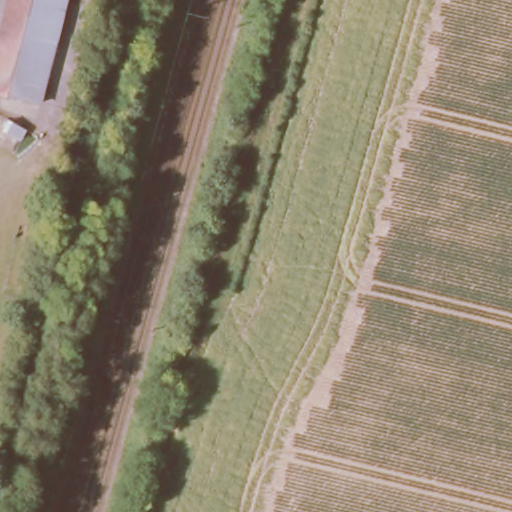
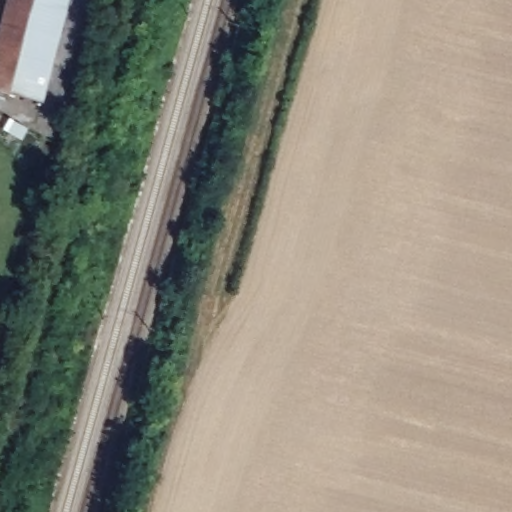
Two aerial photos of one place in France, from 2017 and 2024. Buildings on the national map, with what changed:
unchanged [(58,0),(31,104),(0,94),(0,10),(3,0),(58,0)]

